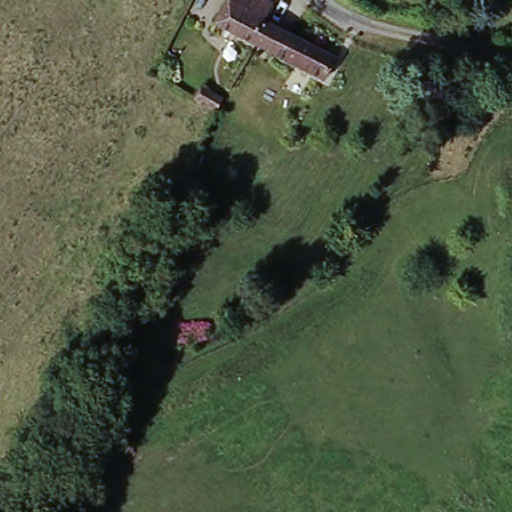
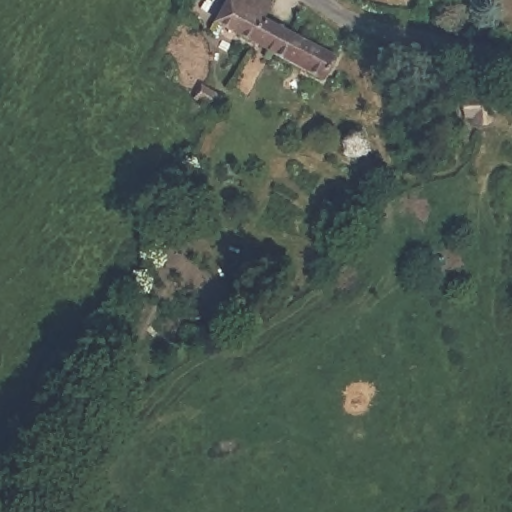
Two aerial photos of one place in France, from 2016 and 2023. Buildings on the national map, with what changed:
unchanged [(217,30),(231,0),(255,0),(271,8),(264,24),(252,47),(217,30)]
unchanged [(408,14),(405,28),(392,27),(393,14),(408,14)]
unchanged [(340,61),(328,85),(252,47),(264,24),(282,34),(340,61)]
unchanged [(218,112),(214,123),(195,113),(200,103),(218,112)]

